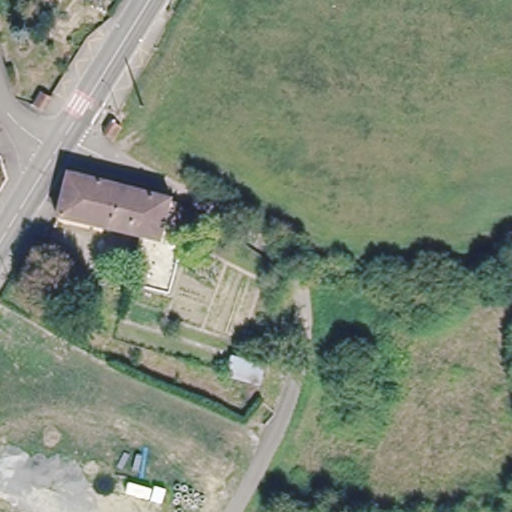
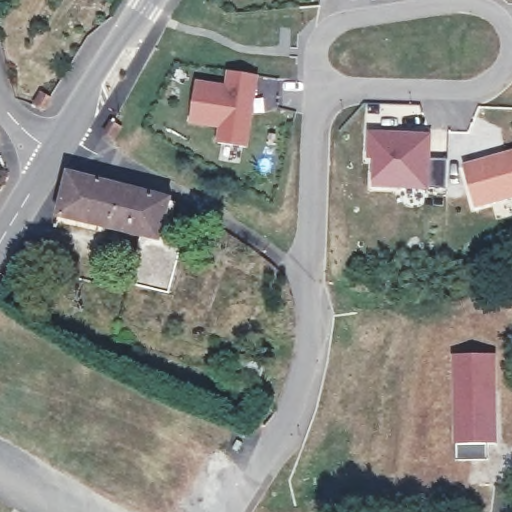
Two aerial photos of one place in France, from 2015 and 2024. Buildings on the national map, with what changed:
new [(225,85),(227,71),(259,75),(250,146),(217,144),(220,126),(190,123),(196,80),(225,85)]
unchanged [(46,89),(36,104),(23,97),(35,81),(43,86),(46,89)]
unchanged [(128,120),(132,122),(125,135),(115,128),(121,116),(128,120)]
new [(406,135),(406,140),(430,140),(429,156),(448,158),(446,187),(374,184),(376,155),(369,154),(370,133),(406,135)]
new [(461,166),(512,151),(512,200),(478,211),(461,166)]
unchanged [(169,194),(168,202),(159,246),(175,252),(165,295),(126,286),(137,234),(55,215),(68,170),(169,194)]
unchanged [(56,247),(76,252),(71,271),(29,261),(39,242),(56,247)]
new [(496,352),(498,444),(486,445),(486,460),(455,461),(451,353),(496,352)]

